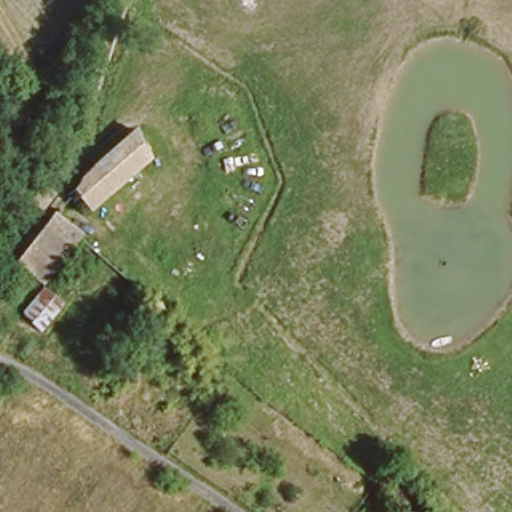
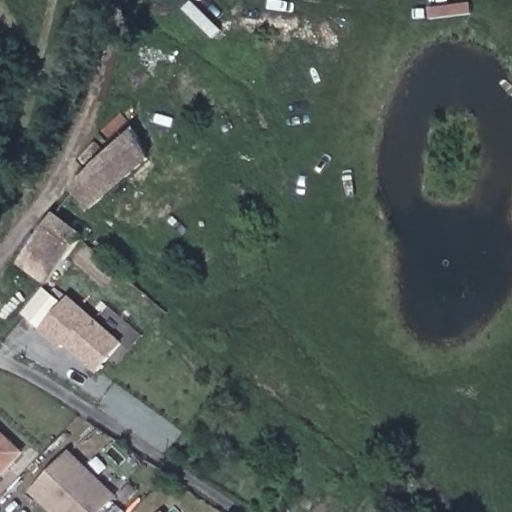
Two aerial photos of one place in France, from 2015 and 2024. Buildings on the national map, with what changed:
unchanged [(90,207),(68,179),(134,121),(152,158),(90,207)]
unchanged [(71,231),(53,257),(34,280),(7,260),(28,234),(44,211),(71,231)]
unchanged [(19,312),(38,290),(53,303),(35,326),(19,312)]
new [(39,332),(69,298),(123,344),(98,373),(64,345),(60,349),(39,332)]
new [(0,476),(0,430),(23,452),(0,476)]
new [(29,494),(70,451),(118,497),(103,512),(49,512),(29,494)]

